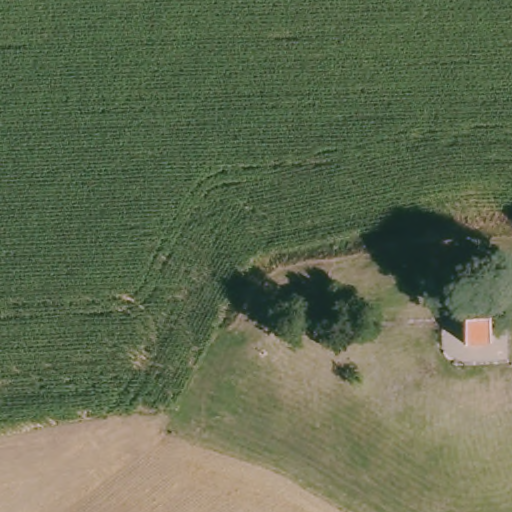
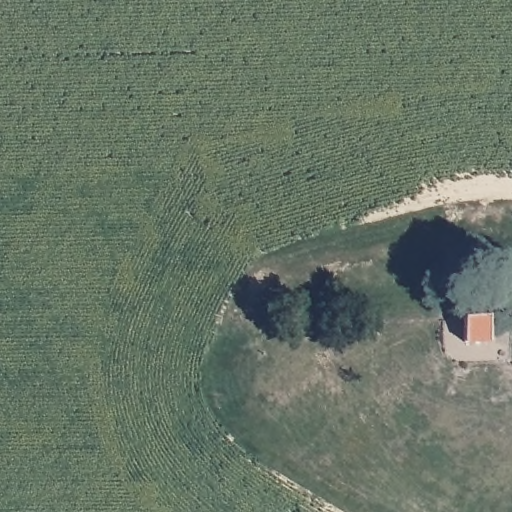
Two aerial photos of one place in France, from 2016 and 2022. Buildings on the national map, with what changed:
unchanged [(488,317),(489,342),(462,342),(461,317),(488,317)]

